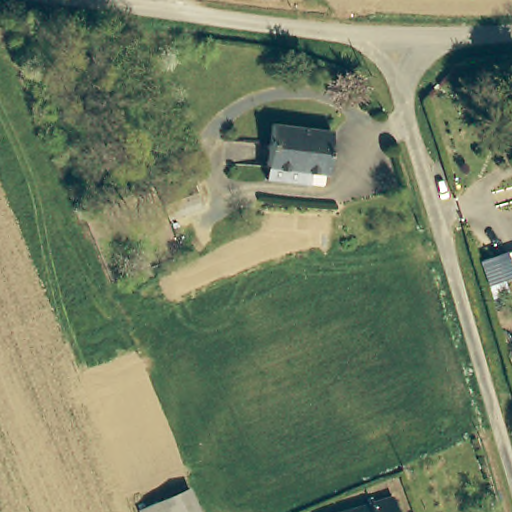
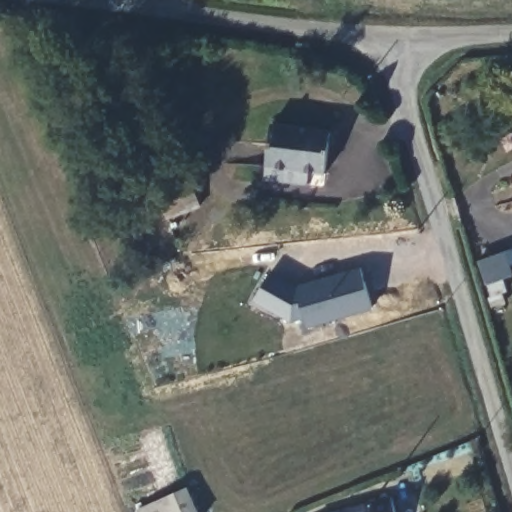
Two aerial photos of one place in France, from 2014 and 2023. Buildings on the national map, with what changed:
unchanged [(270,183),(272,169),(278,125),(337,134),(330,178),(315,176),(313,189),(270,183)]
unchanged [(168,210),(158,181),(192,170),(202,197),(168,210)]
new [(373,308),(309,329),(306,320),(291,322),(254,303),(270,271),(295,286),(362,268),(373,308)]
unchanged [(192,488),(200,512),(138,512),(138,511),(192,488)]
unchanged [(396,495),(402,512),(342,512),(396,495)]

